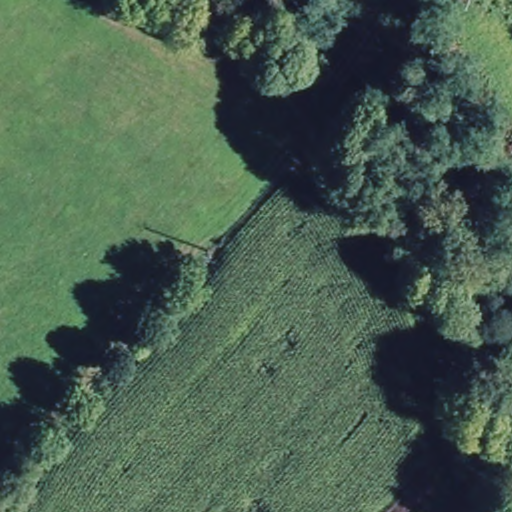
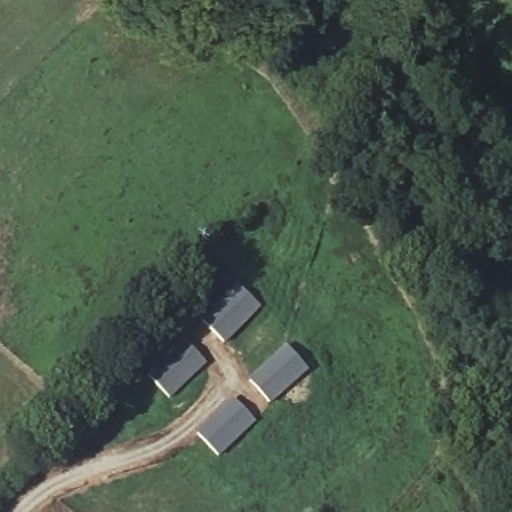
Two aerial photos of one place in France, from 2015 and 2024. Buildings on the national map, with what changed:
new [(198,319),(236,285),(259,310),(221,344),(198,319)]
new [(166,394),(145,368),(182,335),(204,361),(166,394)]
new [(251,384),(284,346),(310,368),(275,406),(251,384)]
new [(222,459),(198,438),(232,401),(257,425),(222,459)]

